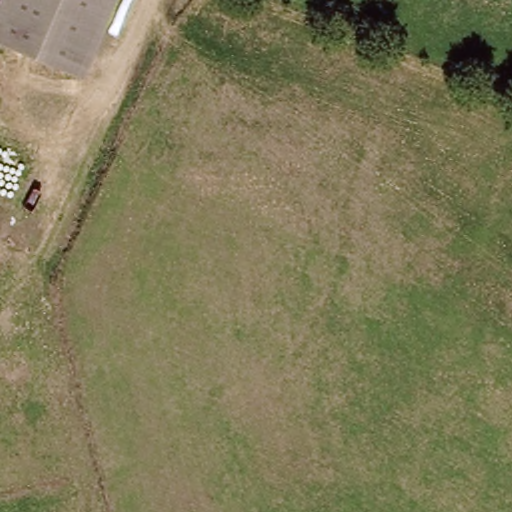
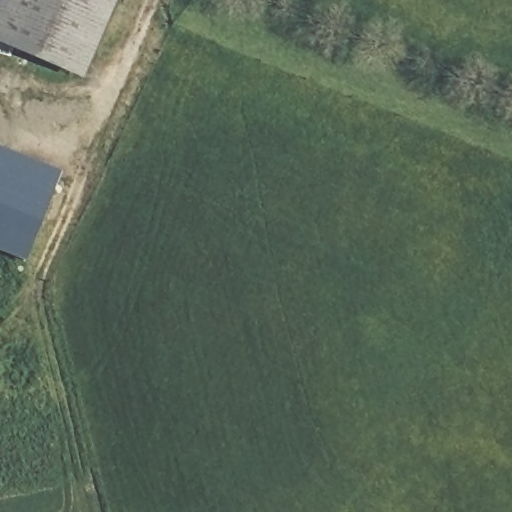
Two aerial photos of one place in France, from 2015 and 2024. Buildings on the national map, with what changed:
unchanged [(0,38),(0,13),(6,0),(118,0),(87,74),(0,38)]
new [(0,250),(0,146),(61,172),(23,260),(0,250)]

